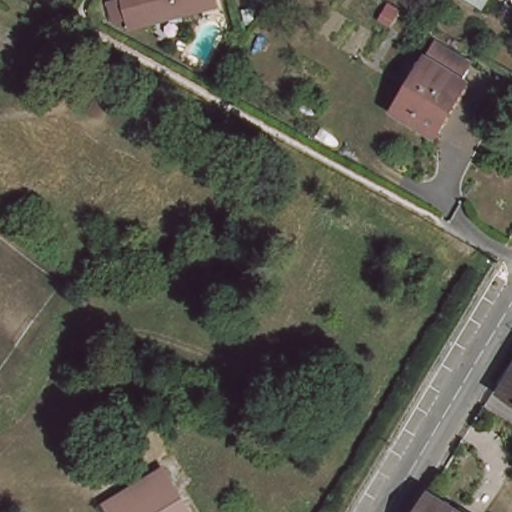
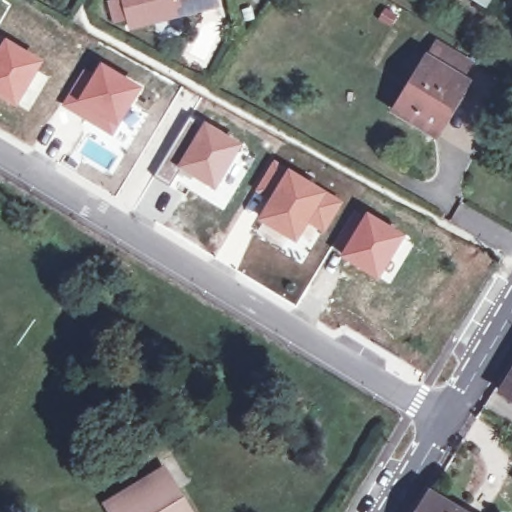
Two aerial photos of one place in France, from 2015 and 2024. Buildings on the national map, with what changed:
unchanged [(117,0),(215,0),(217,5),(133,28),(131,19),(118,23),(113,1),(117,0)]
unchanged [(465,0),(488,0),(482,10),(465,0)]
unchanged [(434,34),(473,55),(467,70),(428,47),(434,34)]
new [(3,36),(44,61),(39,70),(48,76),(28,112),(0,98),(0,41),(3,36)]
unchanged [(424,56),(462,79),(433,129),(394,104),(424,56)]
new [(84,69),(91,74),(99,61),(141,88),(113,138),(61,105),(84,69)]
new [(203,121),(243,144),(215,191),(175,169),(203,121)]
new [(323,234),(308,224),(296,243),(256,219),(268,199),(254,190),(273,159),(289,168),(344,202),(323,234)]
new [(366,210),(406,235),(378,280),(339,255),(366,210)]
unchanged [(512,378),(512,401),(502,394),(512,378)]
unchanged [(105,504),(163,468),(176,489),(191,512),(110,512),(105,504)]
unchanged [(431,488),(467,512),(416,512),(431,488)]

